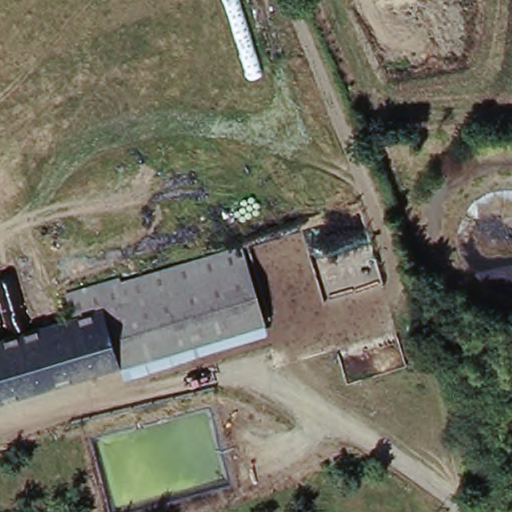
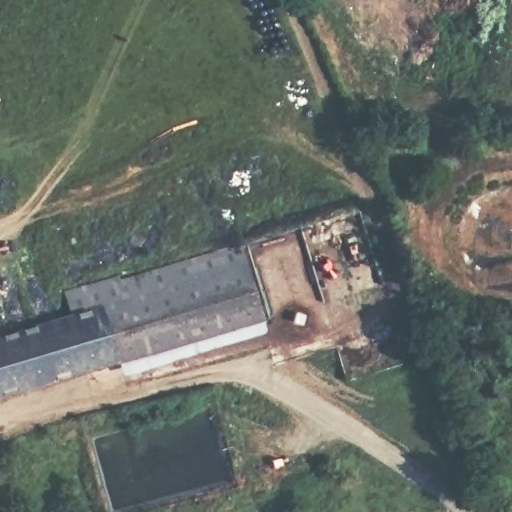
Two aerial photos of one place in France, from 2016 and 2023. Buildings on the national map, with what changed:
unchanged [(241,249),(265,327),(120,370),(104,311),(75,320),(69,300),(241,249)]
unchanged [(75,320),(104,311),(120,370),(0,405),(0,340),(75,320)]

